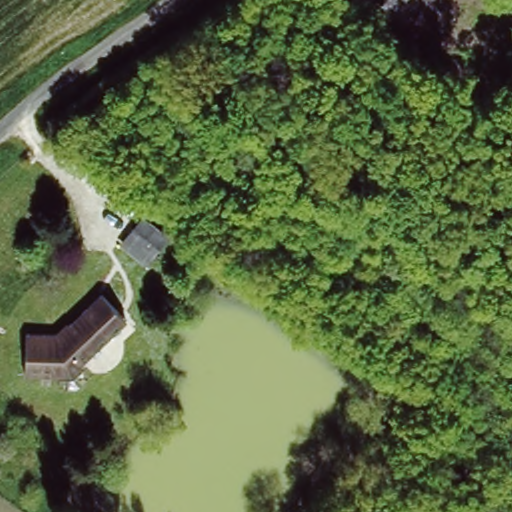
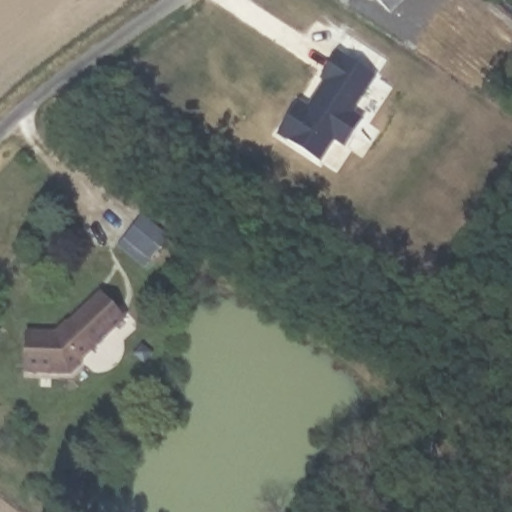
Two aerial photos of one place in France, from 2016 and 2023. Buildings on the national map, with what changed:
unchanged [(392,15),(372,0),(402,0),(392,15)]
new [(305,104),(312,92),(323,73),(318,69),(336,39),(381,66),(355,108),(368,116),(349,148),(336,140),(320,166),(271,135),(294,97),(305,104)]
unchanged [(141,212),(171,237),(148,264),(121,240),(141,212)]
unchanged [(28,326),(51,325),(55,328),(96,286),(122,312),(80,356),(82,358),(72,369),(28,368),(28,326)]

